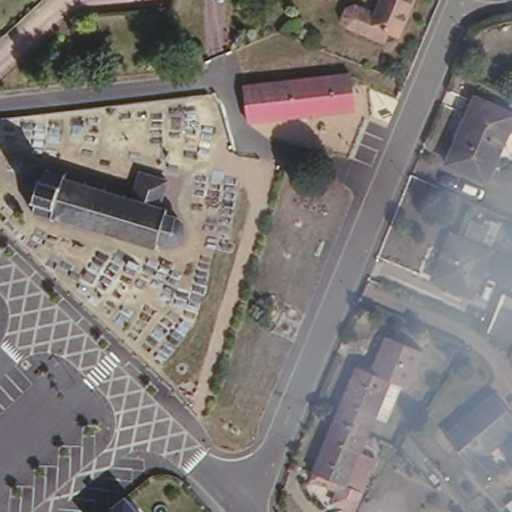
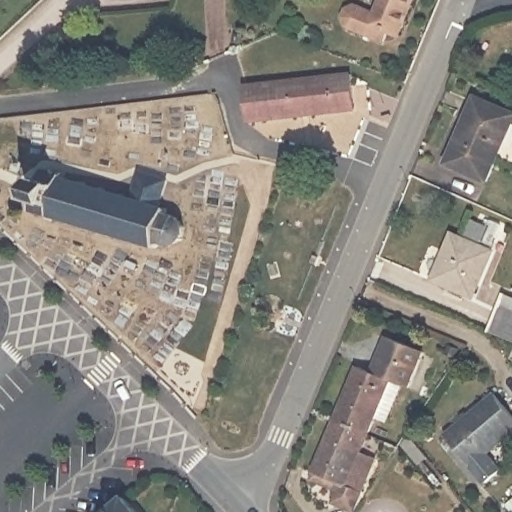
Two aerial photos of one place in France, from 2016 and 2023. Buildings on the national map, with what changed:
unchanged [(408,6),(399,27),(389,23),(385,32),(355,21),(363,2),(375,7),(378,0),(394,0),(408,6)]
unchanged [(408,6),(394,0),(410,0),(408,6)]
unchanged [(349,68),(354,102),(308,110),(307,74),(349,68)]
unchanged [(307,74),(308,110),(267,116),(248,118),(242,82),(307,74)]
unchanged [(480,97),(512,111),(512,116),(486,174),(453,160),(480,97)]
unchanged [(154,242),(152,247),(22,206),(35,162),(126,191),(136,165),(167,176),(159,197),(167,200),(166,208),(172,211),(184,217),(184,227),(181,236),(175,242),(168,245),(162,245),(154,242)]
unchanged [(433,275),(451,232),(490,249),(472,291),(433,275)]
unchanged [(512,295),(512,339),(496,332),(512,295)]
unchanged [(393,376),(365,447),(377,455),(357,507),(335,498),(341,482),(311,471),(356,363),(393,376)]
unchanged [(482,479),(443,431),(492,391),(512,414),(512,425),(483,448),(497,466),(482,479)]
unchanged [(135,512),(98,512),(120,494),(135,512)]

